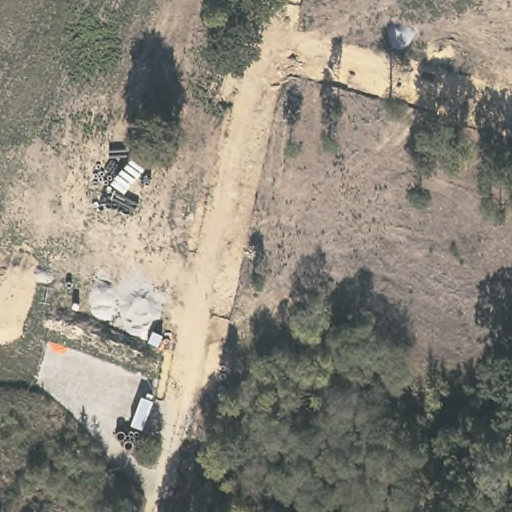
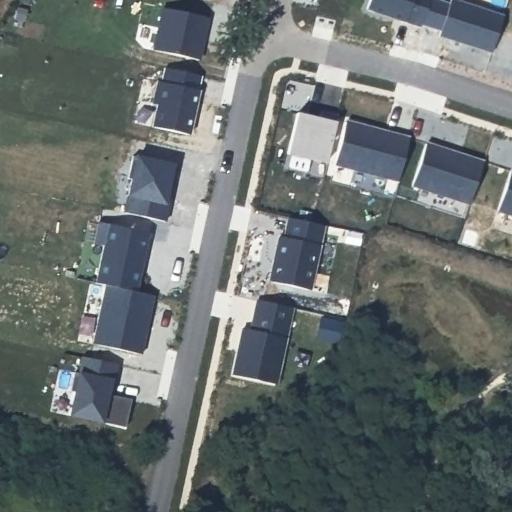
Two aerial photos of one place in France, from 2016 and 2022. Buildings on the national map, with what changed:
new [(369,0),(439,0),(450,3),(450,0),(455,0),(503,16),(492,52),(440,35),(441,30),(421,23),(419,28),(406,23),(366,9),(369,0)]
new [(162,8),(208,18),(200,60),(152,49),(162,8)]
new [(158,104),(153,103),(158,81),(162,83),(165,69),(201,75),(197,90),(199,90),(190,134),(152,125),(158,104)]
new [(299,114),(335,122),(326,162),(288,154),(299,114)]
new [(335,164),(347,120),(409,137),(397,183),(335,164)]
new [(483,160),(468,205),(412,187),(427,143),(483,160)]
new [(129,195),(132,179),(129,178),(133,158),(136,158),(137,155),(176,164),(170,188),(173,189),(166,220),(124,212),(129,195)]
new [(511,167),(512,167),(512,216),(498,212),(511,167)]
new [(280,233),(286,234),(290,214),(325,222),(311,287),(271,278),(280,233)]
new [(99,222),(110,224),(150,233),(137,292),(154,295),(141,354),(93,345),(107,285),(96,282),(104,245),(95,243),(99,222)]
new [(242,328),(251,330),(257,300),(292,309),(286,338),(275,384),(232,375),(242,328)]
new [(75,372),(79,373),(82,356),(119,365),(114,379),(111,397),(132,400),(126,428),(102,423),(69,415),(74,392),(70,390),(75,372)]

